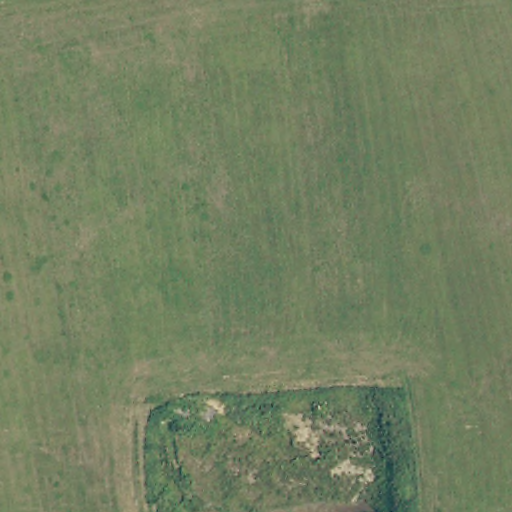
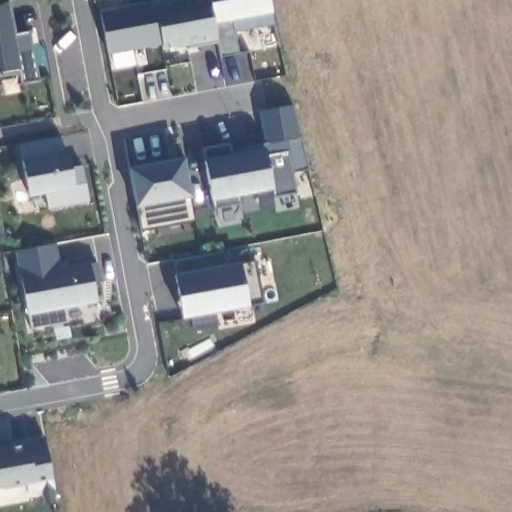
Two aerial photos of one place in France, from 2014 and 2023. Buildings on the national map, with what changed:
new [(159,0),(268,0),(271,12),(275,25),(246,30),(250,51),(220,56),(217,43),(164,52),(162,46),(109,56),(98,10),(159,0)]
new [(15,69),(0,72),(0,6),(6,2),(13,35),(29,30),(40,80),(19,84),(15,69)]
new [(306,169),(292,171),(296,191),(271,195),(273,206),(241,211),(240,203),(214,206),(211,200),(205,162),(204,150),(229,145),(231,154),(250,152),(250,146),(265,144),(260,109),(291,105),(306,169)]
new [(66,151),(70,166),(81,164),(89,200),(49,209),(45,195),(28,196),(20,160),(17,144),(60,135),(66,151)]
new [(137,229),(134,209),(127,167),(184,157),(190,198),(192,220),(137,229)]
new [(60,266),(96,260),(100,281),(94,283),(100,317),(29,328),(14,250),(55,242),(60,266)]
new [(226,267),(240,265),(255,260),(261,303),(249,307),(215,312),(217,325),(190,328),(190,317),(184,318),(175,275),(173,261),(223,251),(226,267)]
new [(44,505),(40,491),(30,492),(29,485),(0,491),(0,448),(11,446),(10,440),(43,435),(56,503),(44,505)]

